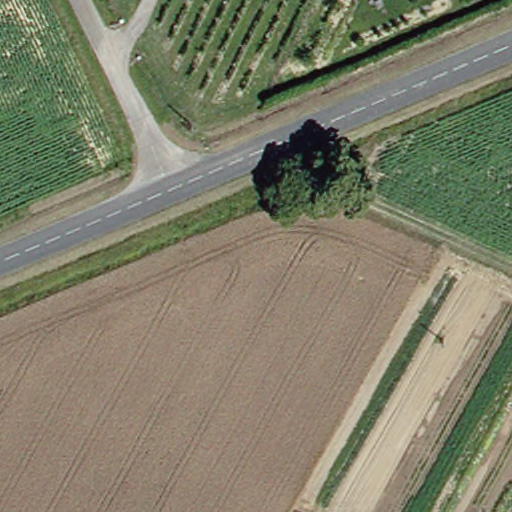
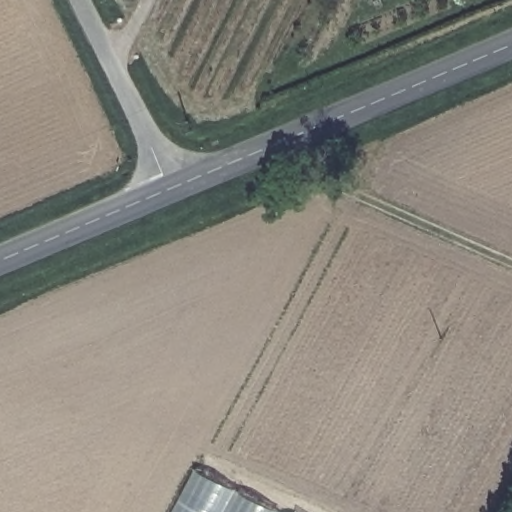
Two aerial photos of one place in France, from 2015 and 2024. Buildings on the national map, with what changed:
new [(276,512),(177,512),(198,470),(276,512)]

